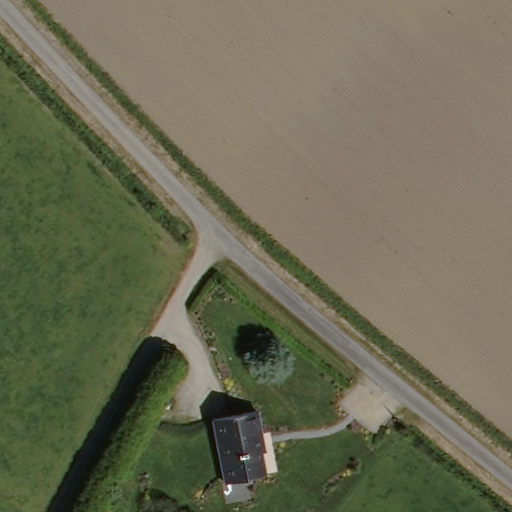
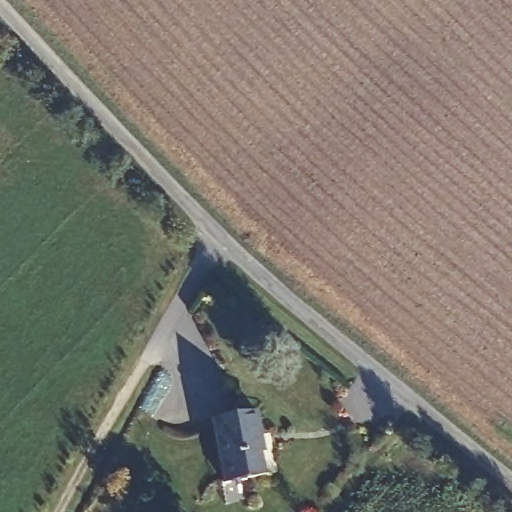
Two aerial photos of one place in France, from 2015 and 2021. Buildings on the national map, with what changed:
unchanged [(215,415),(254,408),(266,477),(227,483),(215,415)]

